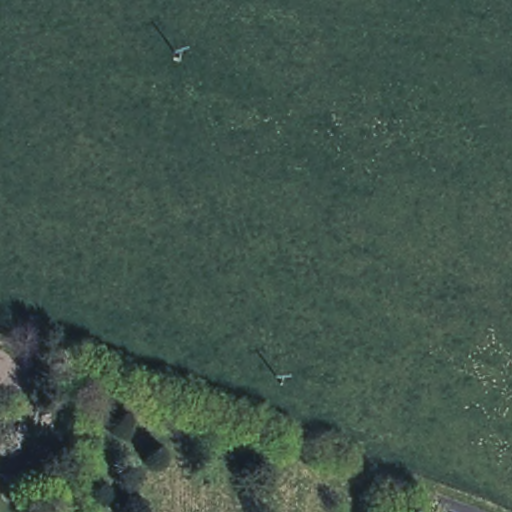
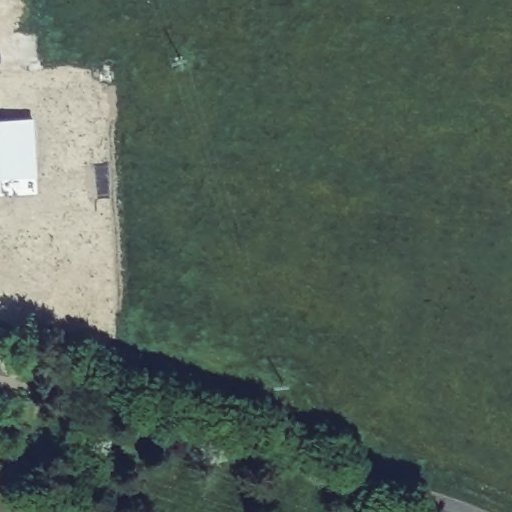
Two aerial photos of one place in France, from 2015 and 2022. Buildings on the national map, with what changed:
new [(34,120),(38,181),(3,182),(3,197),(0,197),(0,123),(34,120)]

